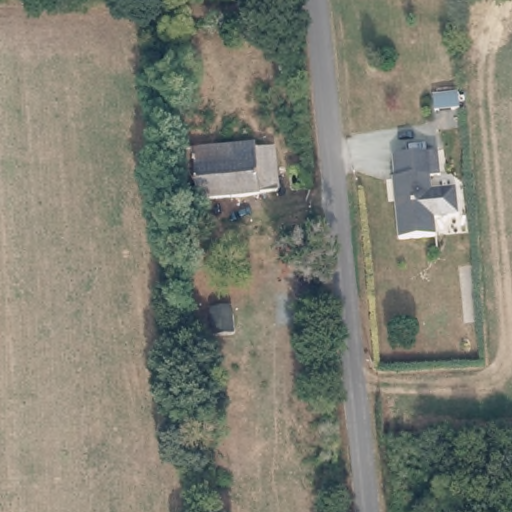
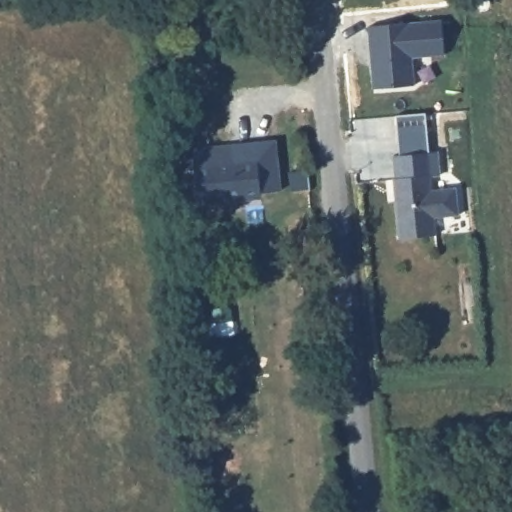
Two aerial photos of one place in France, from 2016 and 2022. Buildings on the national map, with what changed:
new [(440,19),(443,55),(411,57),(414,84),(371,88),(365,26),(440,19)]
unchanged [(255,142),(257,149),(278,148),(281,190),(262,193),(259,196),(200,202),(197,185),(184,187),(179,150),(255,142)]
unchanged [(438,147),(440,171),(430,172),(432,190),(455,188),(458,219),(436,221),(437,238),(402,241),(392,151),(438,147)]
unchanged [(312,192),(299,193),(298,175),(310,173),(312,192)]
unchanged [(233,306),(236,334),(213,336),(210,308),(233,306)]

